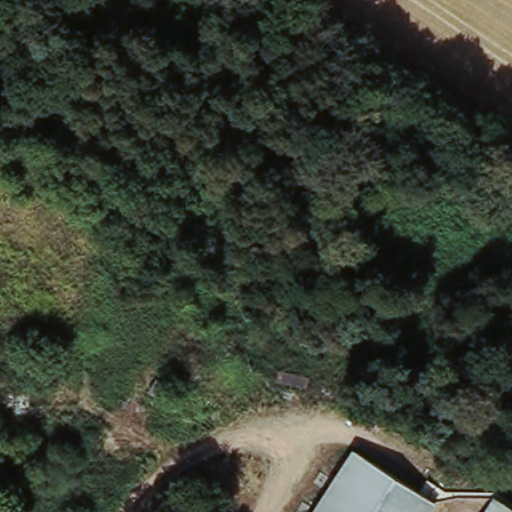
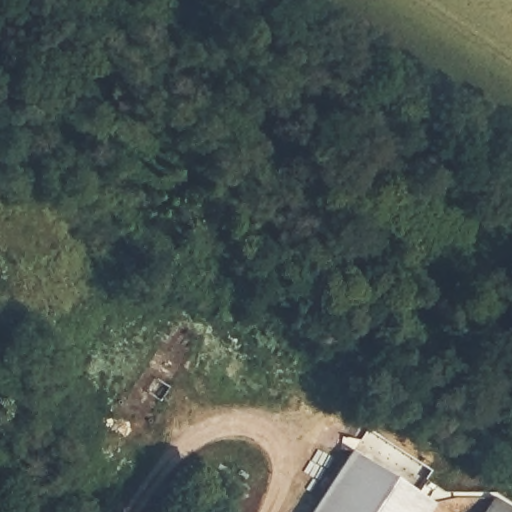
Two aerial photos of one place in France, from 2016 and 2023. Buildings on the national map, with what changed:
unchanged [(315,512),(351,455),(441,510),(439,512),(315,512)]
unchanged [(512,509),(512,512),(488,512),(497,499),(512,509)]

